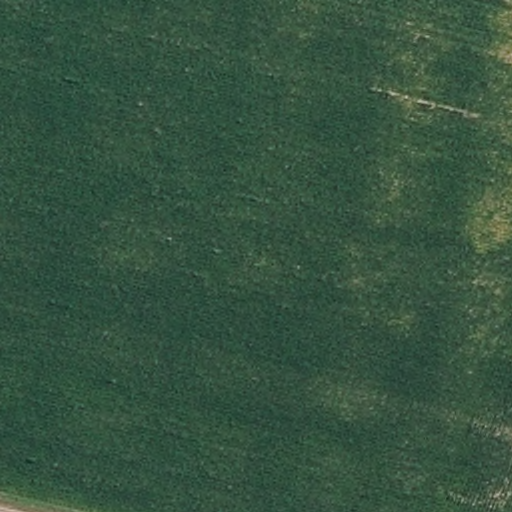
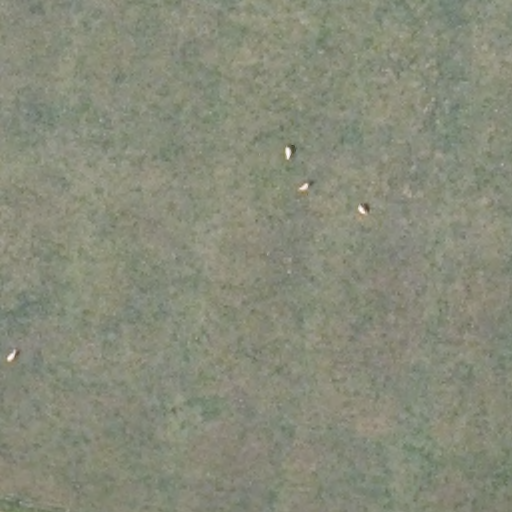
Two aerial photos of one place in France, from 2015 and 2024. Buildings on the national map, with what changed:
[]

